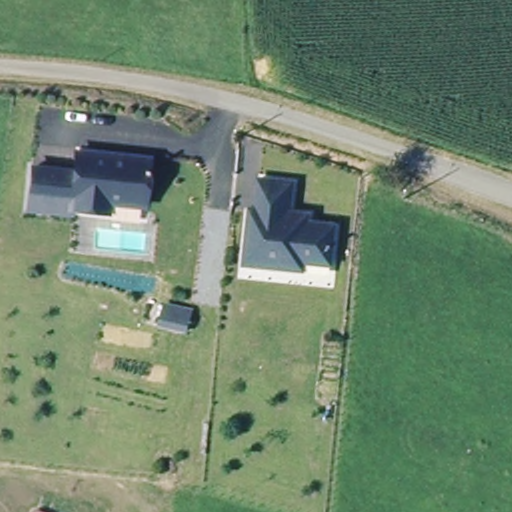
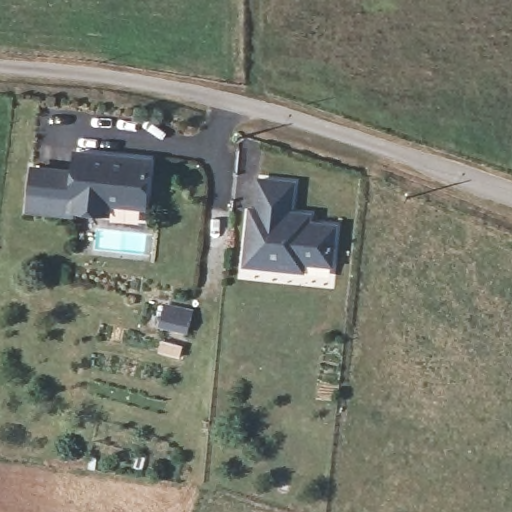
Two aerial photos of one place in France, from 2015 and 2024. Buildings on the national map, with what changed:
unchanged [(146,205),(110,200),(110,209),(73,207),(72,211),(31,206),(35,164),(76,170),(80,149),(151,159),(146,205)]
unchanged [(245,263),(252,209),(257,209),(261,176),(295,180),(292,215),(311,219),(311,226),(336,229),(331,266),(305,262),(305,271),(245,263)]
unchanged [(185,328),(161,323),(165,302),(190,310),(185,328)]

